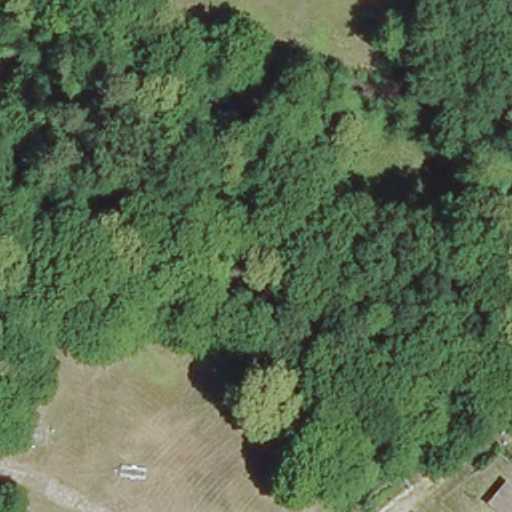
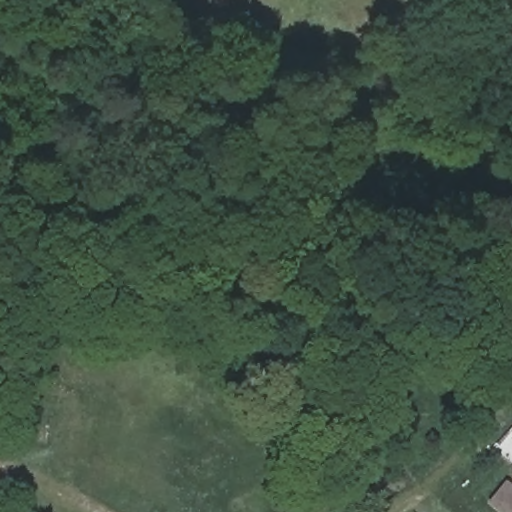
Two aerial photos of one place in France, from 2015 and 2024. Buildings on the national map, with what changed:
unchanged [(505,512),(489,499),(504,480),(512,487),(512,512),(505,512)]

